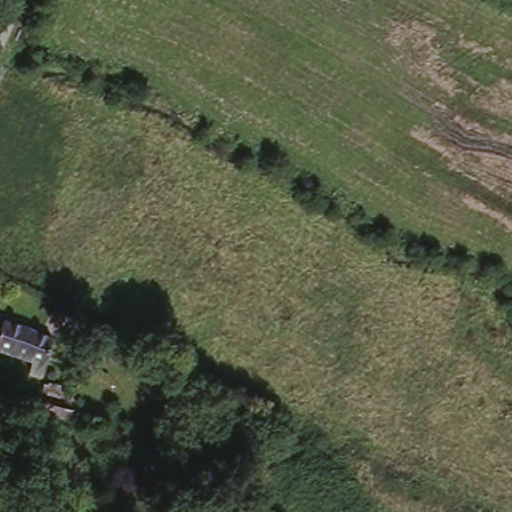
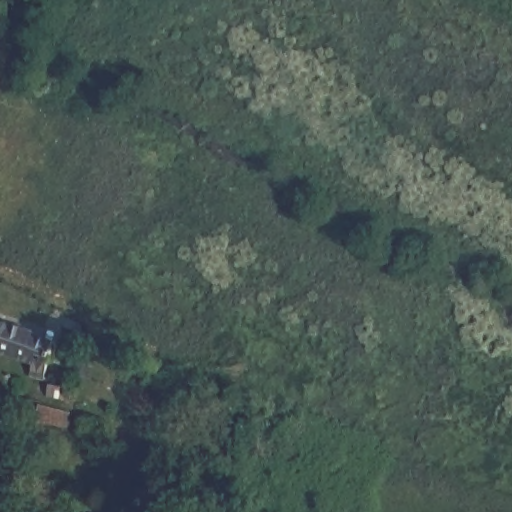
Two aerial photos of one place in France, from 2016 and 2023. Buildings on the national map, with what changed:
unchanged [(28,383),(33,370),(0,358),(0,336),(1,336),(5,326),(55,345),(43,388),(28,383)]
unchanged [(67,408),(64,426),(33,417),(36,399),(67,408)]

